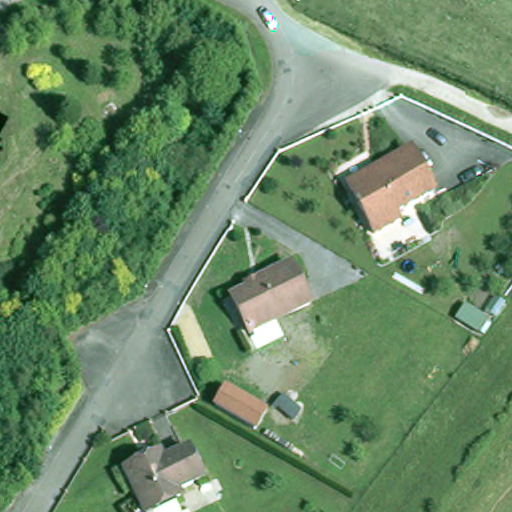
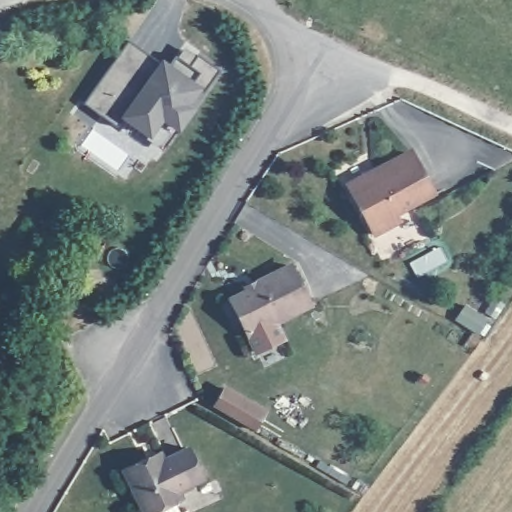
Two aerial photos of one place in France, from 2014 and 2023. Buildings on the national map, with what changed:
new [(220,70),(205,92),(201,90),(192,105),(196,109),(180,134),(175,132),(164,148),(149,137),(120,119),(117,126),(85,104),(129,39),(158,57),(170,64),(182,47),(220,70)]
unchanged [(436,195),(397,213),(399,220),(373,233),(346,182),(365,172),(368,177),(416,154),(436,195)]
unchanged [(312,308),(254,338),(233,305),(291,270),(312,308)]
new [(267,408),(255,430),(213,406),(225,385),(267,408)]
unchanged [(153,465),(188,447),(204,478),(180,491),(182,495),(145,512),(125,472),(150,459),(153,465)]

